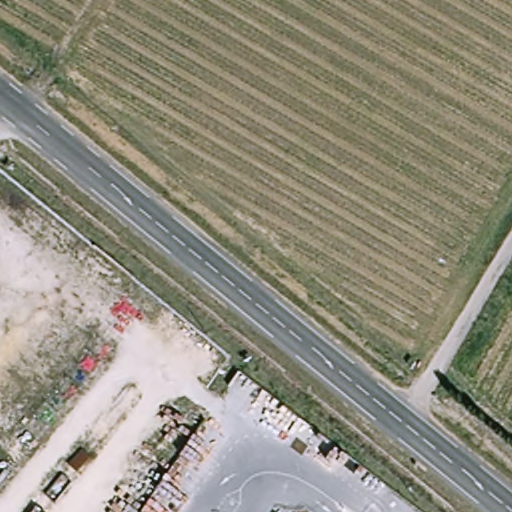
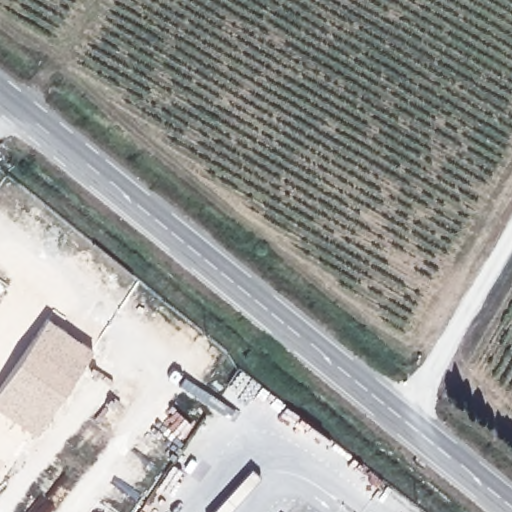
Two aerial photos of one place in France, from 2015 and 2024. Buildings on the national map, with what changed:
new [(93,347),(34,431),(0,407),(0,385),(48,315),(93,347)]

